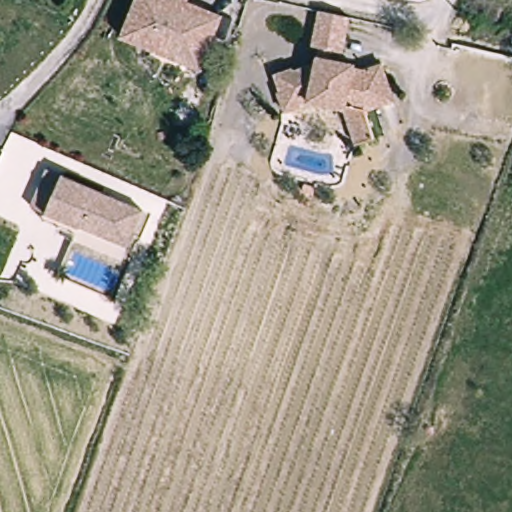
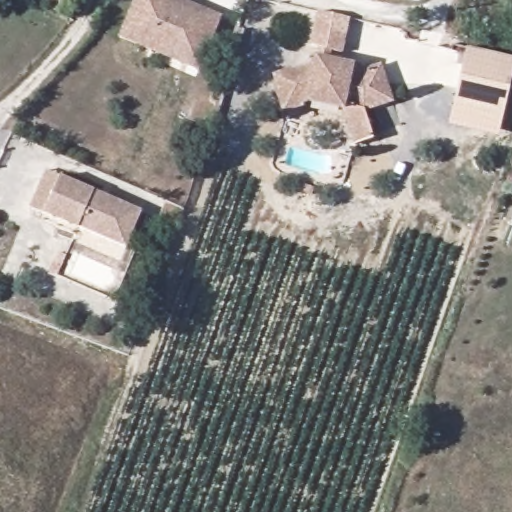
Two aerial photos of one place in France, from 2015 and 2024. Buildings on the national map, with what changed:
unchanged [(138,0),(177,0),(223,16),(204,70),(186,64),(122,42),(126,32),(138,0)]
unchanged [(323,55),(322,60),(312,59),(311,52),(306,51),(315,15),(347,22),(337,57),(323,55)]
new [(512,57),(512,79),(498,136),(448,125),(466,47),(512,57)]
unchanged [(360,147),(340,110),(302,102),(300,108),(281,115),(270,79),(286,71),(287,74),(312,66),(312,59),(322,60),(348,65),(350,70),(358,71),(375,64),(391,99),(365,110),(377,139),(360,147)]
unchanged [(118,244),(51,214),(37,208),(52,171),(67,177),(147,212),(138,237),(132,250),(118,244)]

